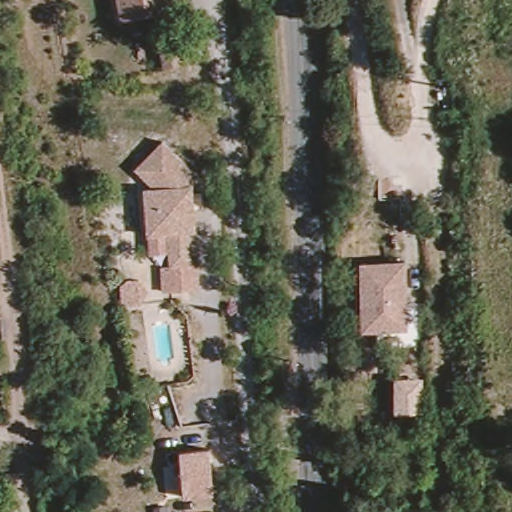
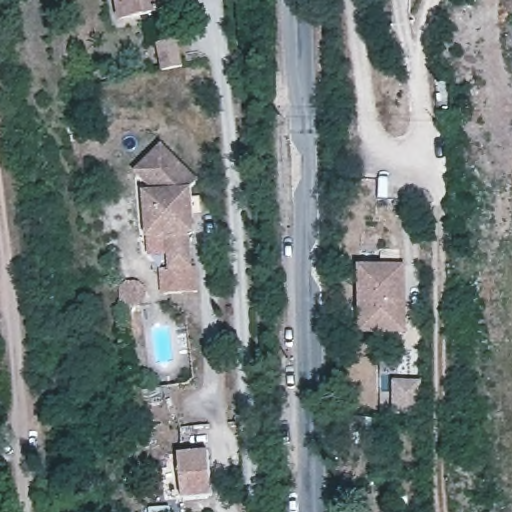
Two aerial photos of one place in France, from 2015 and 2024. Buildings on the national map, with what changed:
unchanged [(116,0),(167,0),(169,11),(119,17),(116,0)]
unchanged [(164,48),(184,45),(188,71),(167,74),(164,48)]
unchanged [(200,293),(168,296),(165,272),(172,272),(168,239),(151,241),(147,214),(146,195),(156,194),(138,177),(136,175),(163,147),(200,183),(191,195),(196,237),(191,237),(195,268),(198,268),(200,293)]
unchanged [(399,267),(400,332),(358,333),(356,268),(399,267)]
unchanged [(140,282),(146,287),(148,295),(142,307),(139,307),(131,308),(122,302),(121,291),(127,283),(131,282),(135,282),(140,282)]
unchanged [(176,453),(208,451),(212,501),(179,500),(176,453)]

